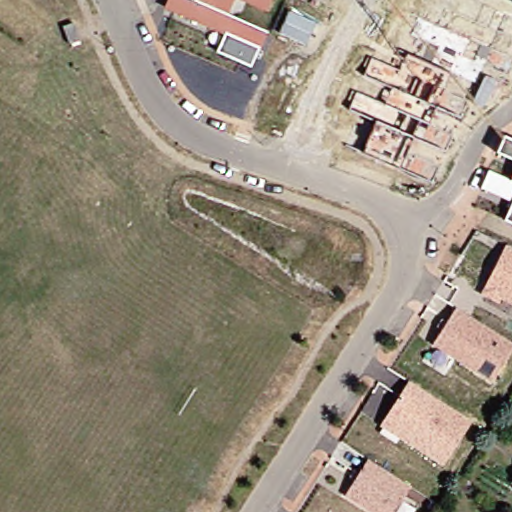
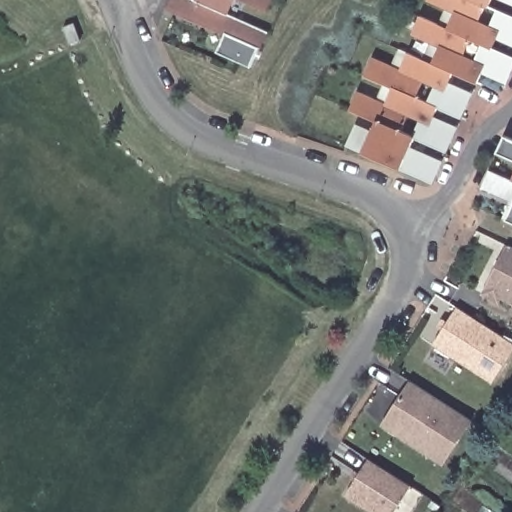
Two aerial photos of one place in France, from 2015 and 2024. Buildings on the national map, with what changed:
unchanged [(229,11),(268,29),(253,64),(219,49),(227,31),(169,5),(170,0),(233,0),(229,11)]
unchanged [(268,7),(251,0),(271,0),(268,7)]
new [(356,125),(373,131),(377,122),(349,112),(358,92),(377,100),(383,86),(364,77),(373,57),(392,65),(399,50),(408,54),(423,60),(431,44),(412,36),(420,17),(438,25),(445,10),(426,2),(427,0),(493,0),(490,7),(512,16),(512,45),(497,39),(493,49),(512,57),(512,73),(507,85),(481,75),(477,85),(452,74),(448,84),(474,94),(463,120),(437,110),(434,118),(459,128),(449,153),(414,140),(411,148),(444,162),(434,185),(402,170),(363,154),(347,146),(356,125)]
new [(501,0),(512,0),(512,5),(501,0)]
unchanged [(502,156),(509,139),(512,140),(512,160),(502,156)]
unchanged [(487,190),(491,180),(494,174),(512,181),(512,201),(487,190)]
unchanged [(509,222),(512,217),(512,224),(509,222)]
unchanged [(507,247),(512,250),(512,305),(500,298),(498,303),(483,296),(507,247)]
unchanged [(433,346),(457,309),(512,344),(512,352),(492,383),(433,346)]
unchanged [(387,418),(410,382),(472,422),(444,465),(408,442),(382,425),(387,418)]
unchanged [(411,486),(394,512),(375,512),(346,494),(369,459),(411,486)]

